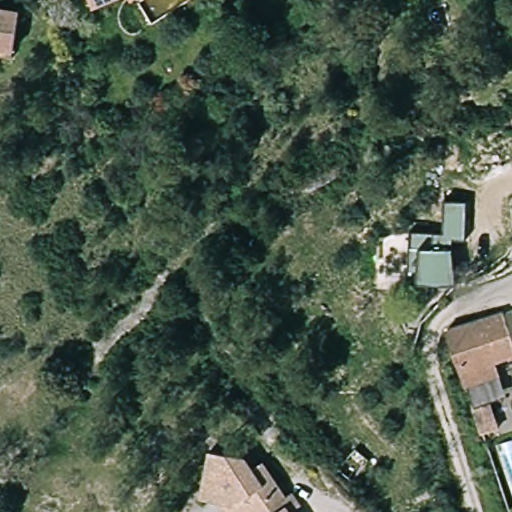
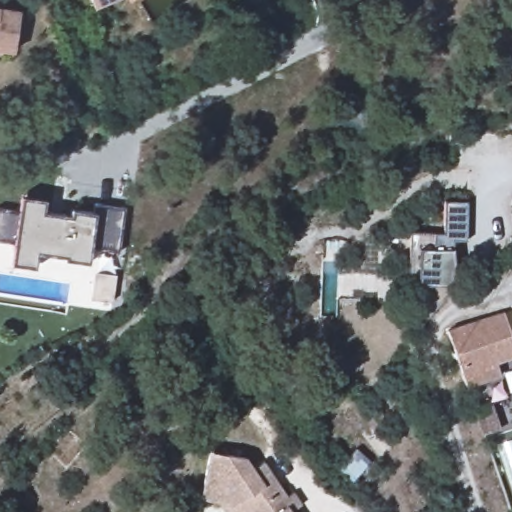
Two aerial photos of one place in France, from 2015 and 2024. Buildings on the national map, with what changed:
unchanged [(88,0),(116,0),(92,10),(88,0)]
unchanged [(11,50),(0,49),(0,6),(18,9),(11,50)]
new [(21,196),(46,200),(45,212),(70,215),(71,210),(94,214),(96,204),(124,209),(118,254),(90,250),(88,262),(66,260),(65,256),(37,252),(34,270),(10,265),(13,245),(0,243),(0,210),(19,213),(21,196)]
unchanged [(456,287),(406,287),(404,233),(434,234),(435,249),(456,249),(456,287)]
unchanged [(502,316),(512,346),(512,361),(495,368),(500,381),(465,392),(445,335),(502,316)]
unchanged [(326,466),(343,444),(358,456),(341,477),(326,466)]
unchanged [(207,447),(244,453),(252,465),(262,458),(285,493),(292,490),(300,500),(289,507),(292,512),(225,512),(221,506),(229,501),(198,495),(207,447)]

